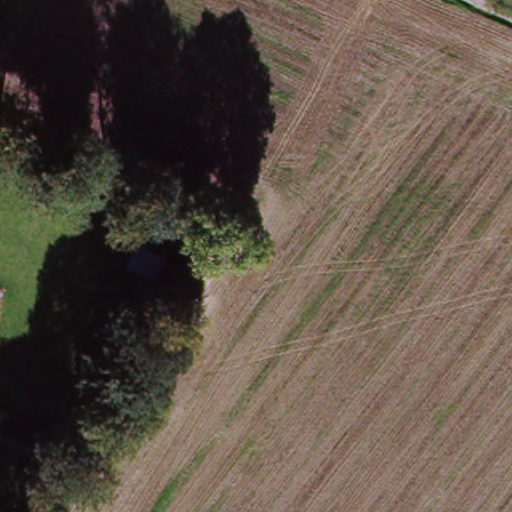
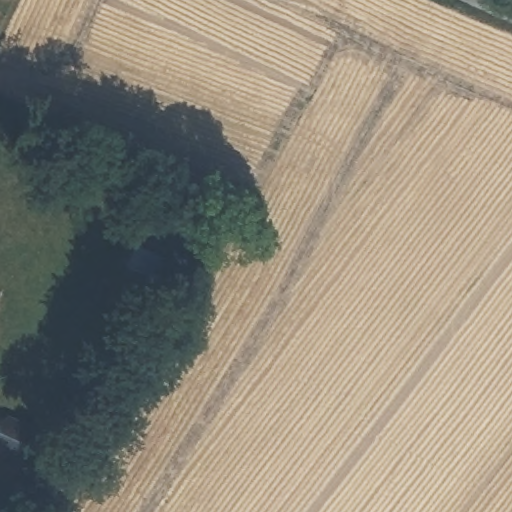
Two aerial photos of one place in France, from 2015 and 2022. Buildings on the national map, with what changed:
unchanged [(27,436),(17,456),(0,448),(0,427),(2,423),(27,436)]

